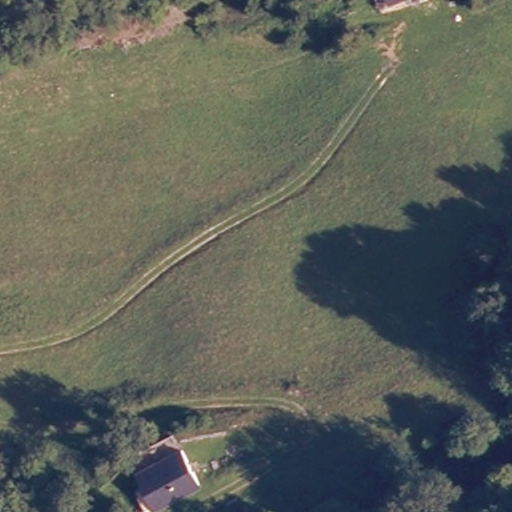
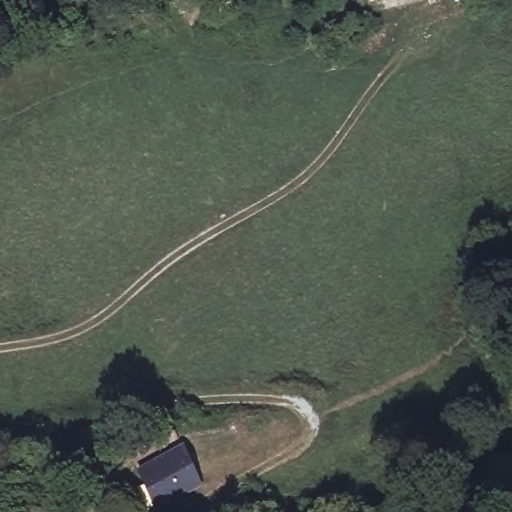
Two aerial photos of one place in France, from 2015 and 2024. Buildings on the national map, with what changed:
unchanged [(205,472),(158,498),(139,463),(185,437),(205,472)]

